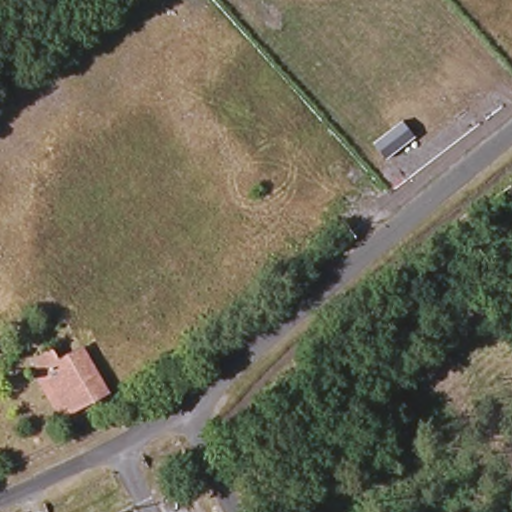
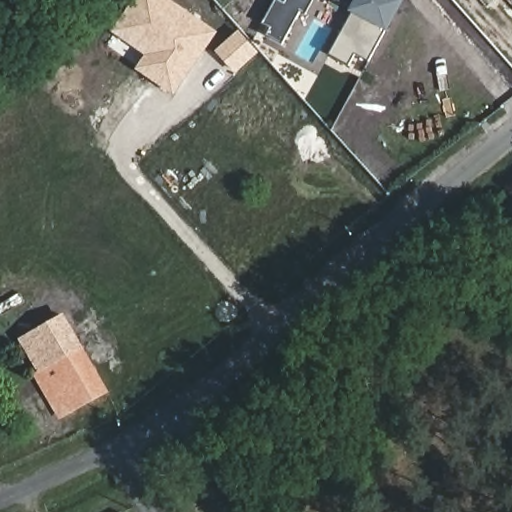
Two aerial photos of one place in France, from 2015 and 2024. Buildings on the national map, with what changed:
new [(147,55),(112,31),(134,0),(172,0),(218,32),(175,95),(137,69),(147,55)]
new [(307,15),(300,12),(283,43),(267,35),(272,27),(264,23),(276,0),(280,0),(286,3),(287,0),(313,0),(307,15)]
new [(331,55),(353,12),(351,10),(352,7),(338,0),(405,0),(390,30),(371,61),(356,53),(351,65),(331,55)]
new [(236,72),(215,51),(239,29),(258,52),(236,72)]
new [(76,349),(52,362),(47,351),(32,360),(20,338),(65,312),(86,347),(77,352),(76,349)]
unchanged [(30,377),(36,374),(29,362),(47,351),(52,362),(76,349),(101,393),(60,416),(55,419),(30,377)]

